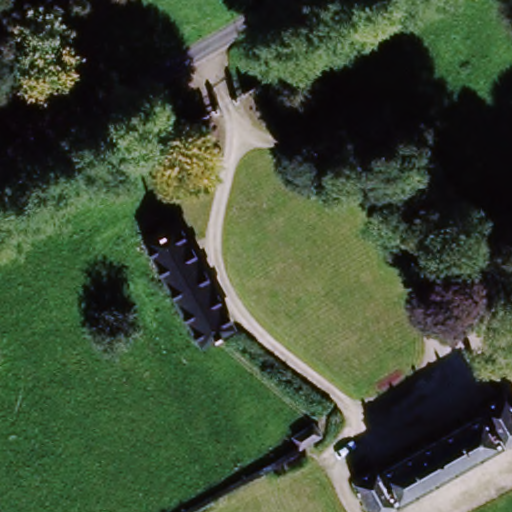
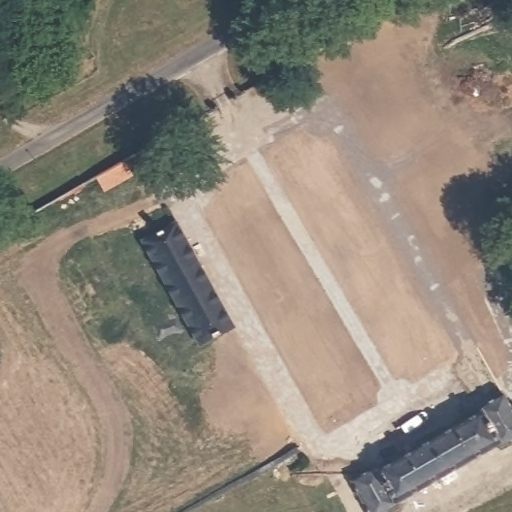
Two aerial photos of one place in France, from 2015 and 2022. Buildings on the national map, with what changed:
unchanged [(119,160),(130,179),(104,194),(92,175),(119,160)]
unchanged [(177,231),(232,334),(227,337),(214,345),(202,352),(144,250),(177,231)]
unchanged [(512,445),(396,512),(370,512),(357,489),(508,402),(512,409),(512,445)]
unchanged [(295,452),(287,437),(307,427),(315,441),(295,452)]

